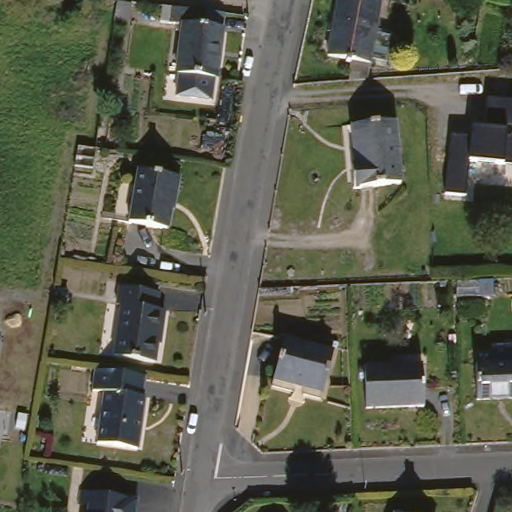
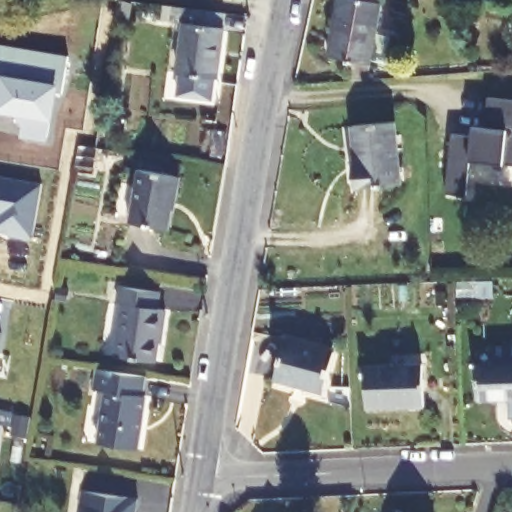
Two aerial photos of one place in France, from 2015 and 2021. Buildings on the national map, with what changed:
unchanged [(386,47),(379,74),(321,59),(336,0),(382,0),(371,44),(386,47)]
unchanged [(212,24),(226,25),(218,89),(216,89),(214,111),(177,107),(179,85),(177,85),(182,35),(162,32),(163,19),(212,24)]
new [(20,82),(23,66),(67,56),(62,94),(54,92),(47,141),(22,137),(24,127),(14,112),(0,111),(0,80),(20,82)]
unchanged [(470,136),(472,127),(486,129),(488,96),(512,98),(512,165),(468,160),(465,195),(444,193),(449,135),(470,136)]
unchanged [(395,189),(348,194),(346,174),(350,173),(345,129),(389,125),(395,189)]
unchanged [(138,186),(140,172),(184,178),(181,197),(178,197),(174,226),(117,217),(122,183),(138,186)]
new [(45,192),(35,248),(18,245),(18,242),(0,239),(0,185),(45,192)]
unchanged [(124,313),(115,312),(117,295),(161,300),(159,317),(165,318),(163,341),(156,340),(153,370),(118,366),(124,313)]
unchanged [(2,334),(0,348),(0,333),(2,334)]
unchanged [(334,349),(325,393),(274,383),(283,338),(334,349)]
unchanged [(512,353),(512,403),(472,405),(470,368),(482,367),(481,355),(512,353)]
unchanged [(420,369),(421,410),(362,410),(361,370),(420,369)]
unchanged [(138,378),(136,398),(142,400),(135,459),(90,453),(97,398),(85,397),(89,372),(138,378)]
unchanged [(94,507),(86,506),(89,492),(144,502),(142,512),(93,512),(94,507)]

